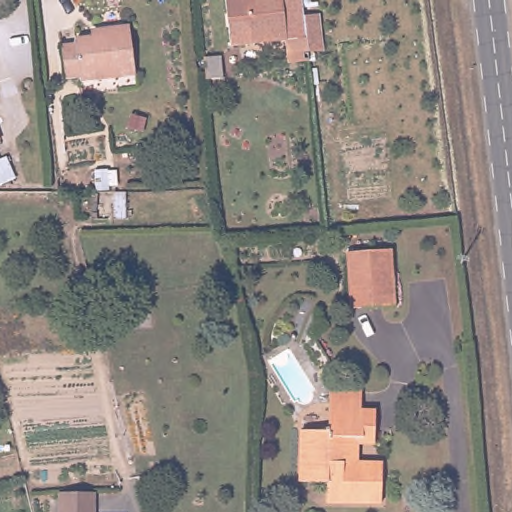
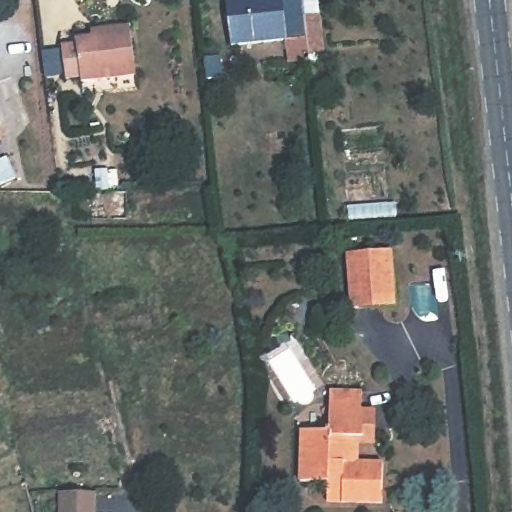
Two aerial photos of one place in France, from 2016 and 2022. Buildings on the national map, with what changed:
unchanged [(288,61),(285,35),(230,40),(226,0),(301,0),(303,14),(317,12),(321,47),(307,49),(308,59),(288,61)]
unchanged [(131,71),(76,76),(76,71),(62,73),(58,42),(72,40),(72,35),(92,34),(91,25),(97,25),(127,22),(131,71)]
unchanged [(221,52),(224,73),(207,75),(205,54),(221,52)]
unchanged [(3,139),(0,140),(0,134),(3,139)]
unchanged [(8,151),(8,154),(14,165),(0,172),(0,155),(8,151)]
unchanged [(391,246),(395,302),(347,305),(345,250),(391,246)]
unchanged [(328,479),(302,479),(302,428),(330,428),(328,389),(363,388),(363,406),(365,406),(366,433),(355,434),(355,458),(387,459),(387,498),(345,498),(328,498),(328,487),(328,479)]
unchanged [(61,490),(94,490),(94,512),(61,512),(61,490)]

